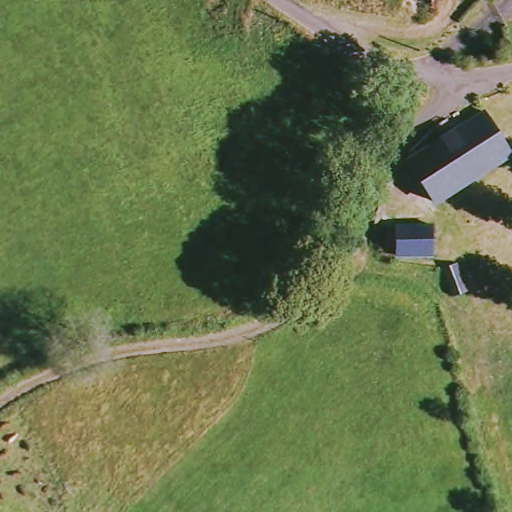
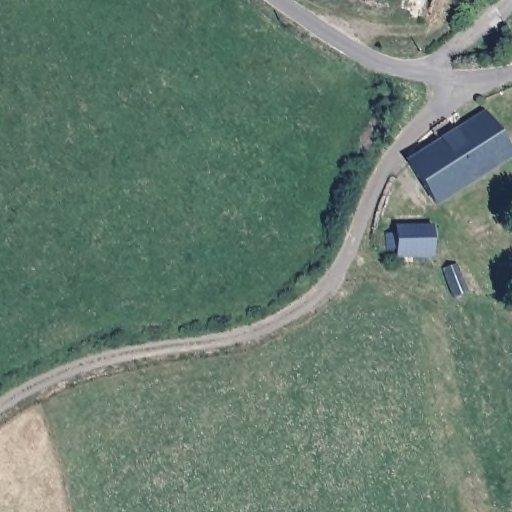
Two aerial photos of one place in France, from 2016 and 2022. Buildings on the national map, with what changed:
unchanged [(507,155),(435,202),(407,162),(412,158),(406,149),(430,130),(438,141),(480,114),(507,155)]
unchanged [(430,239),(430,266),(393,267),(392,259),(385,258),(385,245),(394,244),(394,226),(420,224),(430,239)]
unchanged [(463,275),(474,301),(460,306),(450,282),(445,280),(463,275)]

